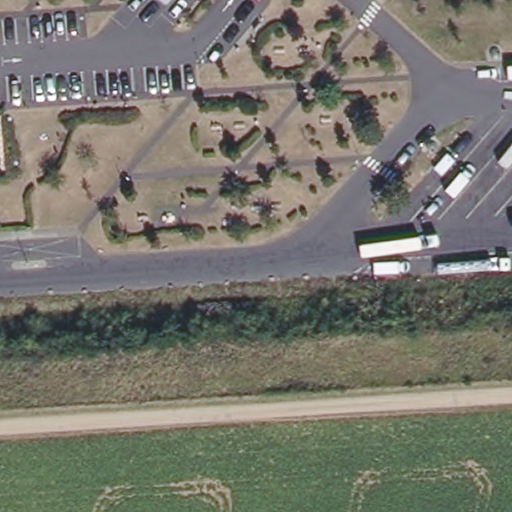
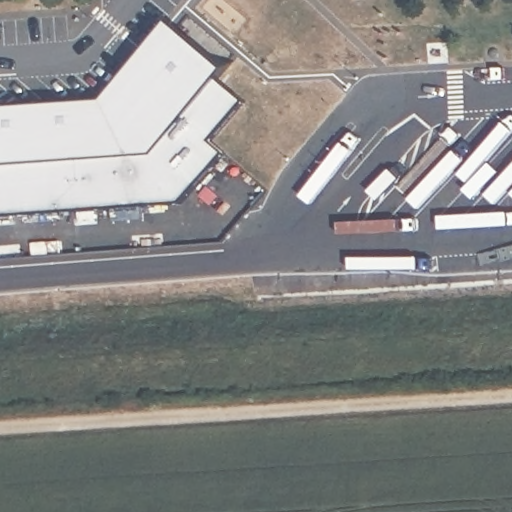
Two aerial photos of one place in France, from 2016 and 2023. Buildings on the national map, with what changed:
new [(102,101),(169,24),(223,70),(216,79),(238,100),(207,139),(222,154),(179,203),(0,214),(0,109),(102,101)]

